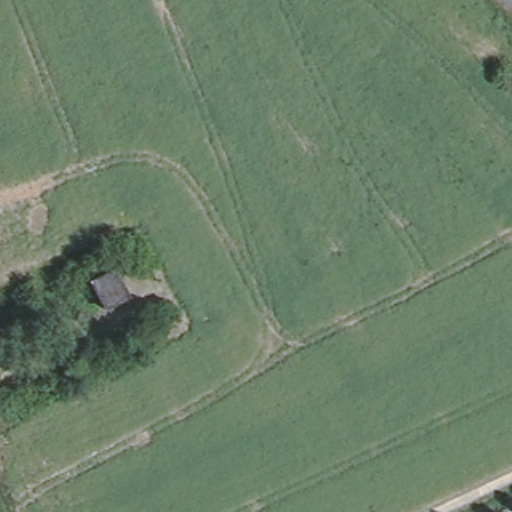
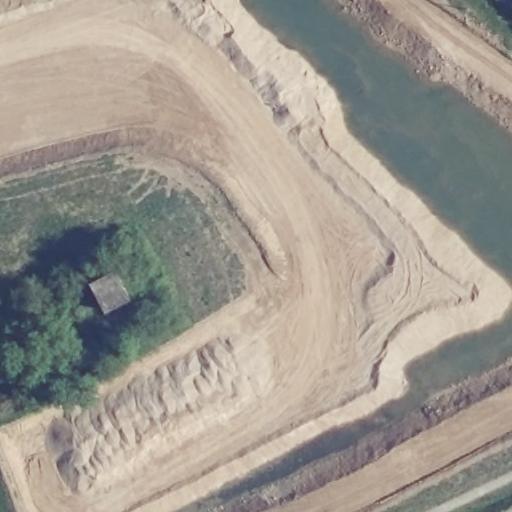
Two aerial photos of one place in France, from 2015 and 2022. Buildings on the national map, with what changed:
unchanged [(135,304),(109,317),(93,285),(115,276),(135,304)]

